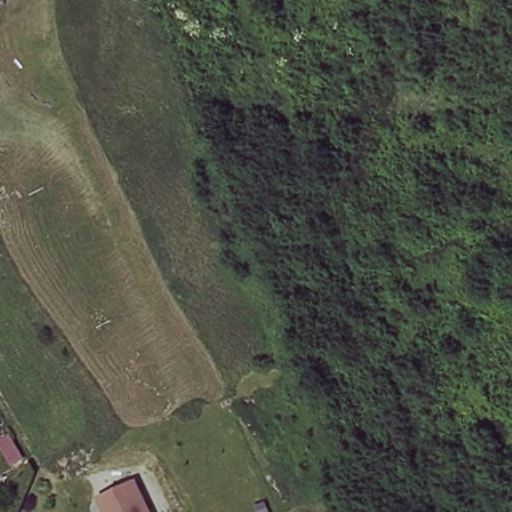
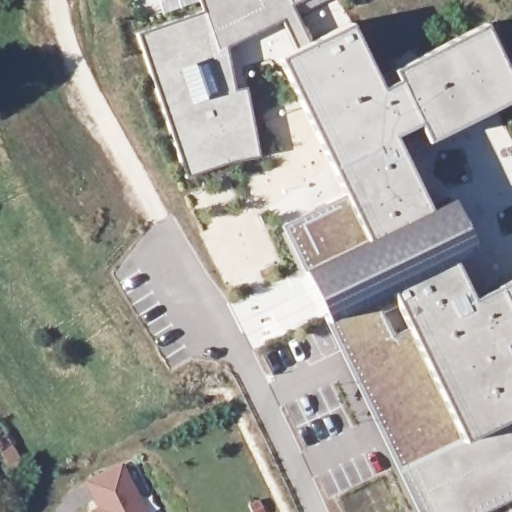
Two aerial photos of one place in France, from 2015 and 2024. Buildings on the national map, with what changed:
new [(310,48),(348,26),(380,92),(398,82),(392,71),(490,22),(512,67),(512,97),(400,157),(426,212),(450,200),(476,252),(452,265),(472,300),(512,280),(512,345),(503,351),(512,367),(512,495),(481,512),(413,512),(282,227),(343,196),(283,62),(296,54),(280,22),(225,48),(233,90),(243,90),(256,157),(188,176),(141,37),(204,14),(200,0),(301,0),(290,7),(310,48)]
unchanged [(93,496),(127,480),(142,512),(101,512),(93,496)]

